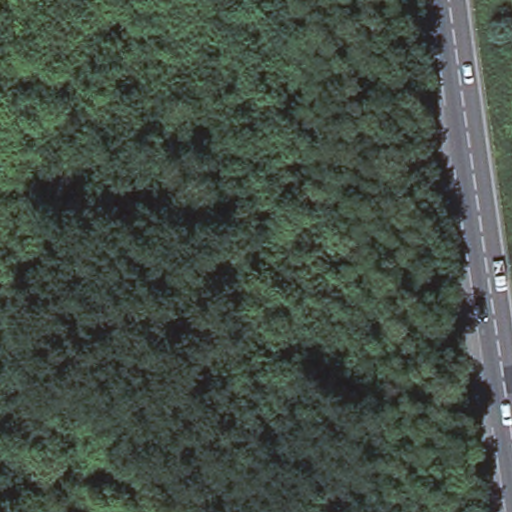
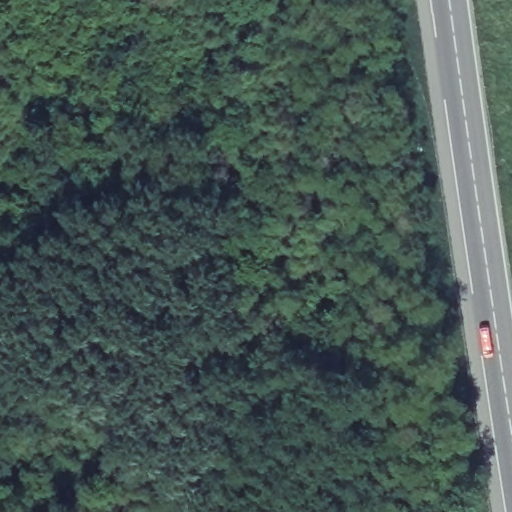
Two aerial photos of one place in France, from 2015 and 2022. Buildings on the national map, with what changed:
[]

